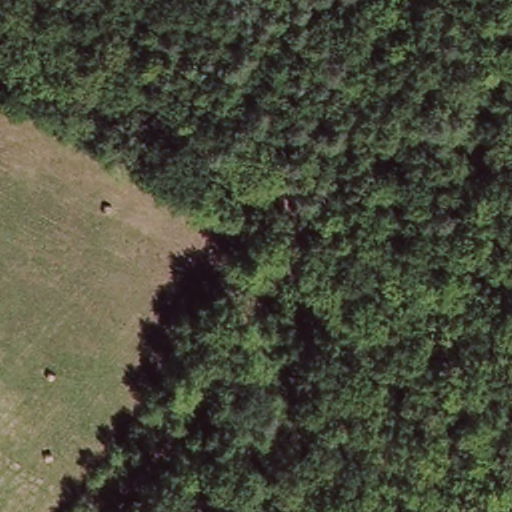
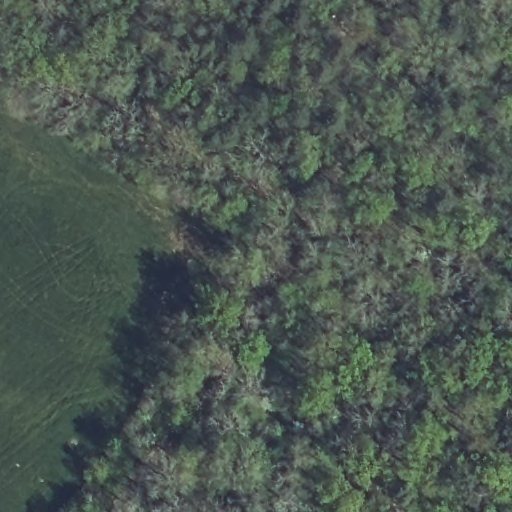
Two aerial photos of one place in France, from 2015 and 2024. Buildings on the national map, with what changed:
unchanged [(170,376),(155,367),(167,346),(182,355),(170,376)]

